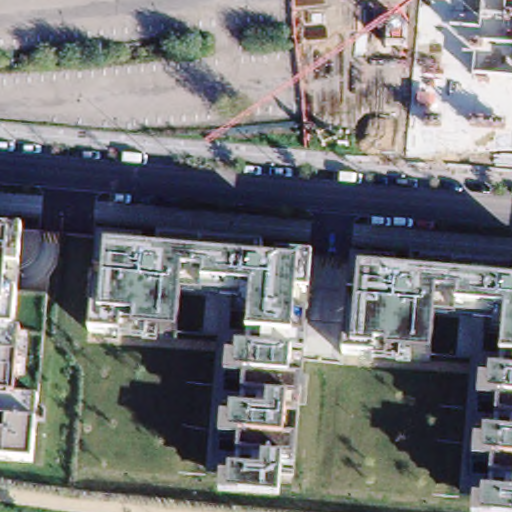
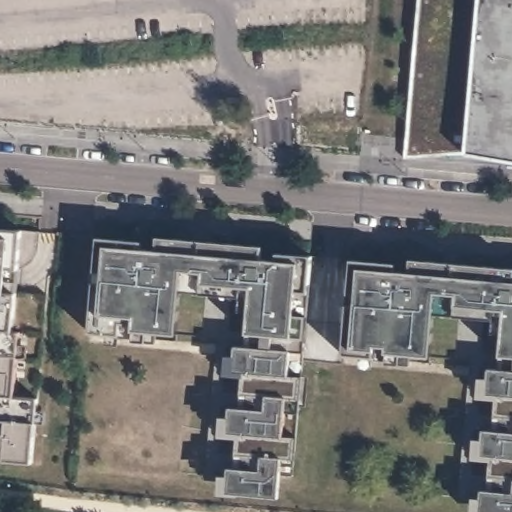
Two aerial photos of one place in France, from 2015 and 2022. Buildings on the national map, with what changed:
new [(405,159),(415,36),(418,0),(512,0),(512,161),(466,153),(405,159)]
unchanged [(0,458),(0,227),(22,229),(17,330),(20,330),(15,398),(37,398),(31,461),(0,458)]
unchanged [(220,492),(221,474),(227,474),(228,466),(235,467),(238,438),(220,436),(221,416),(229,416),(231,407),(240,408),(243,377),(225,375),(227,356),(235,355),(236,344),(248,347),(250,332),(246,332),(251,295),(180,293),(177,333),(148,330),(148,337),(90,331),(103,235),(311,255),(305,351),(292,350),(290,374),(303,374),(300,413),(288,412),(284,435),(297,436),(294,466),(281,465),(278,495),(220,492)]
unchanged [(473,497),(482,498),(483,489),(490,489),(492,459),(473,458),(475,438),(483,438),(484,428),(495,429),(497,399),(478,396),(480,377),(489,377),(490,367),(502,368),(502,355),(500,354),(503,319),(435,314),(430,356),(401,352),(400,358),(343,352),(353,259),(512,274),(512,512),(472,512),(473,497)]

